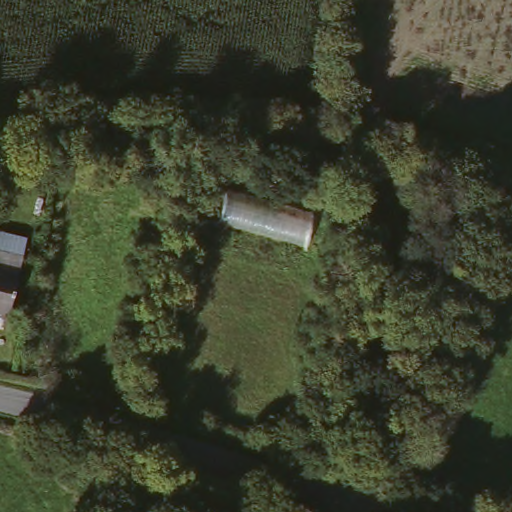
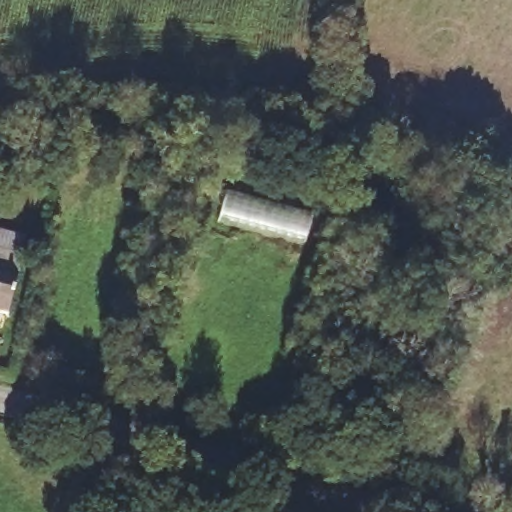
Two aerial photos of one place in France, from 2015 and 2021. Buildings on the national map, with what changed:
unchanged [(11,309),(0,306),(0,243),(23,249),(11,309)]

